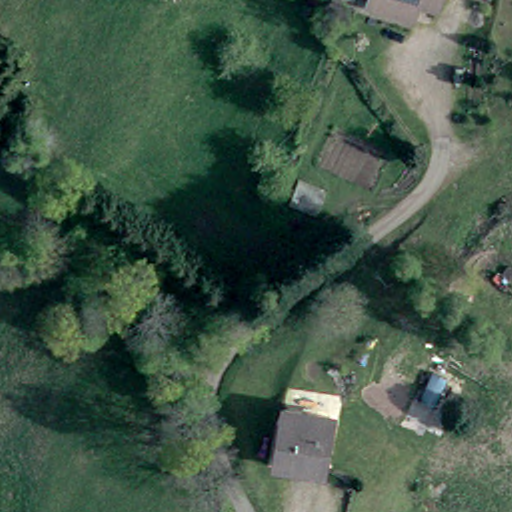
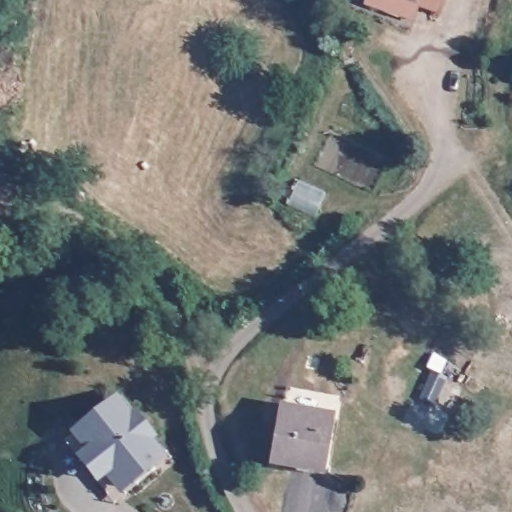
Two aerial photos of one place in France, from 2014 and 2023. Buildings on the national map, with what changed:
unchanged [(415,11),(410,24),(410,25),(361,9),(364,0),(436,0),(431,16),(415,11)]
new [(132,413),(135,411),(157,436),(155,439),(168,454),(122,495),(108,478),(98,486),(76,460),(85,451),(70,432),(117,395),(132,413)]
unchanged [(324,467),(278,467),(278,411),(325,413),(324,467)]

